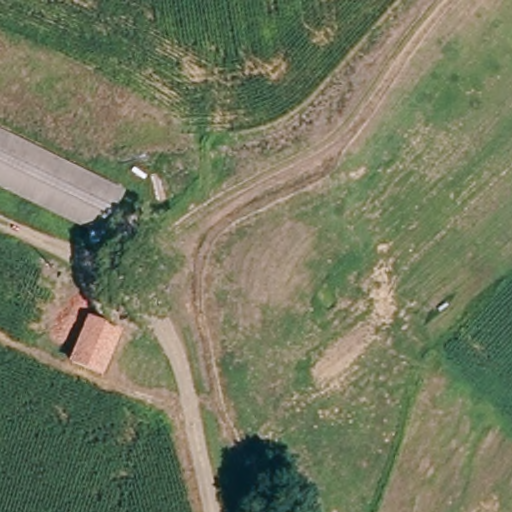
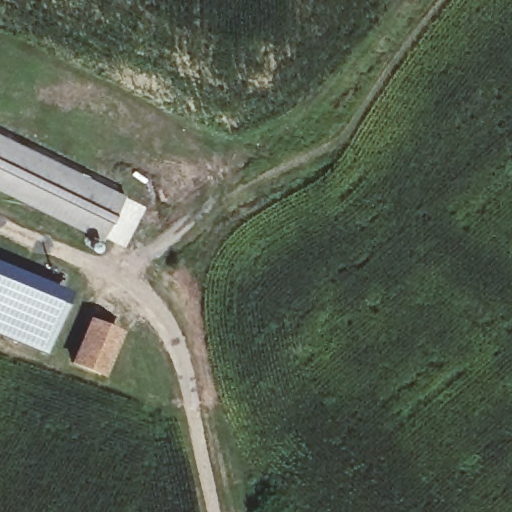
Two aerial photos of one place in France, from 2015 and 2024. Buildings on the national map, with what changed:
unchanged [(0,190),(0,135),(136,200),(114,245),(0,190)]
new [(69,293),(44,355),(0,336),(0,264),(69,293)]
unchanged [(125,331),(108,375),(81,364),(99,323),(125,331)]

